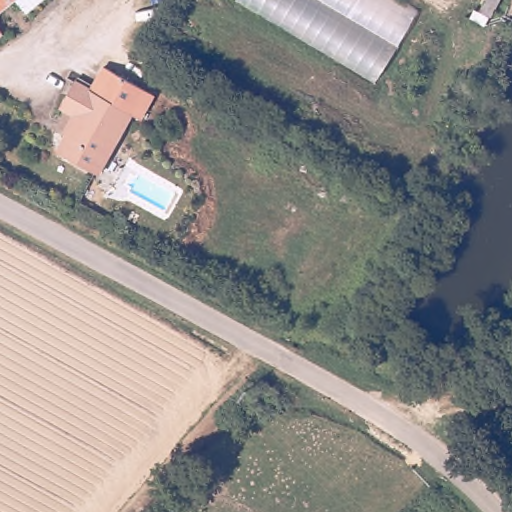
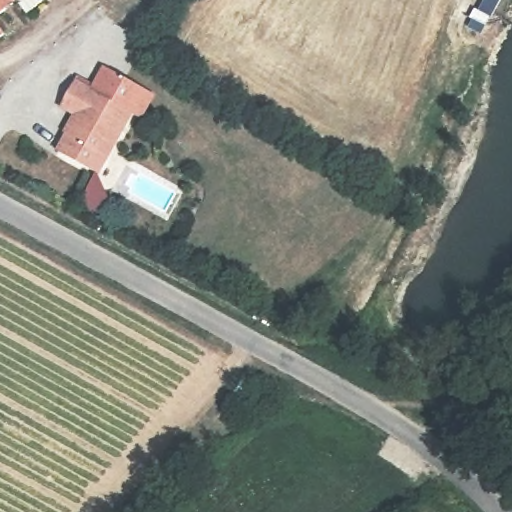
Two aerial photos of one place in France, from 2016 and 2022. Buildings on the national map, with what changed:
unchanged [(10,0),(0,10),(0,0),(10,0)]
unchanged [(32,0),(34,0),(33,1),(32,0)]
demolished [(377,81),(240,0),(402,0),(418,9),(377,81)]
unchanged [(9,24),(0,33),(0,13),(9,24)]
unchanged [(138,119),(129,114),(96,179),(58,156),(66,140),(71,143),(79,126),(54,111),(74,78),(90,89),(104,66),(152,95),(138,119)]

